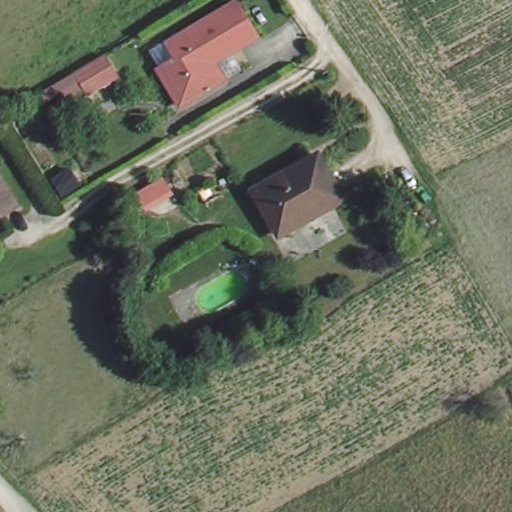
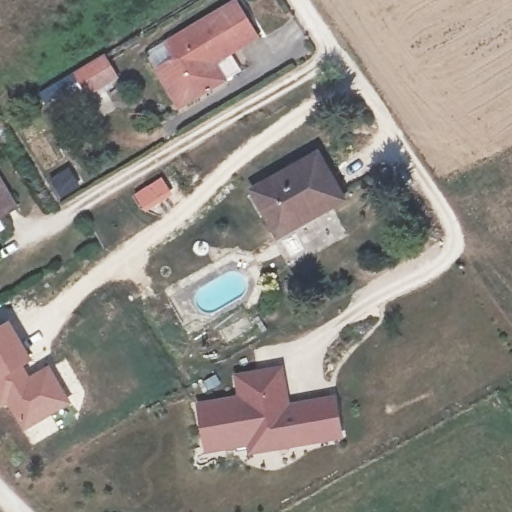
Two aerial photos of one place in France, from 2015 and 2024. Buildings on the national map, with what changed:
unchanged [(242,1),(261,37),(217,62),(226,80),(181,104),(161,64),(178,56),(170,42),(242,1)]
unchanged [(101,54),(115,76),(85,93),(71,70),(101,54)]
unchanged [(271,221),(253,186),(318,153),(340,194),(320,205),(275,229),(271,221)]
unchanged [(3,175),(19,203),(0,212),(0,176),(3,175)]
new [(10,320),(33,360),(25,365),(30,375),(49,364),(71,404),(22,431),(7,405),(0,409),(0,326),(10,320)]
new [(283,365),(290,403),(335,395),(343,439),(248,455),(247,446),(205,454),(196,402),(236,396),(232,374),(283,365)]

